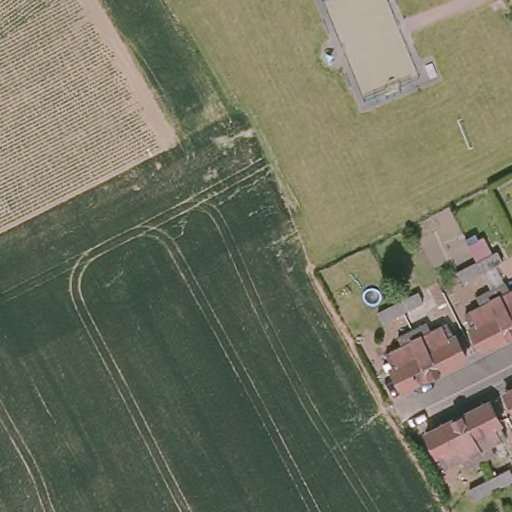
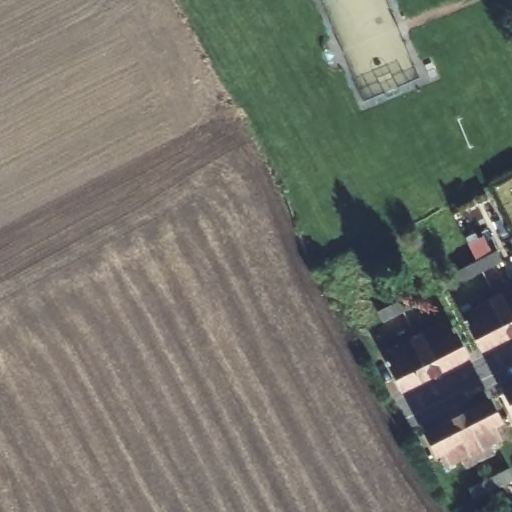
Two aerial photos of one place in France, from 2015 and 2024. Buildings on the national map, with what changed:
unchanged [(473,274),(481,269),(491,264),(496,274),(486,279),(477,284),(473,274)]
unchanged [(512,330),(496,298),(512,289),(512,330)]
unchanged [(512,333),(482,349),(471,327),(473,325),(467,312),(496,298),(512,330),(512,333)]
unchanged [(394,314),(402,309),(413,304),(418,314),(407,319),(399,324),(394,314)]
unchanged [(446,323),(453,334),(455,334),(467,356),(434,373),(416,338),(446,323)]
unchanged [(434,373),(403,389),(391,366),(393,364),(387,353),(416,338),(434,373)]
unchanged [(512,387),(512,411),(503,392),(512,387)]
unchanged [(455,416),(488,399),(498,420),(496,421),(504,435),(473,451),(455,416)]
unchanged [(442,467),(434,452),(434,453),(423,433),(449,419),(455,416),(473,451),(442,467)]
unchanged [(473,474),(482,469),(492,464),(496,473),(487,478),(477,483),(473,474)]

